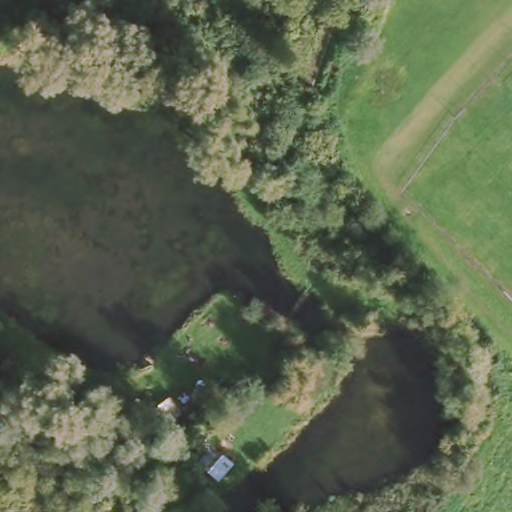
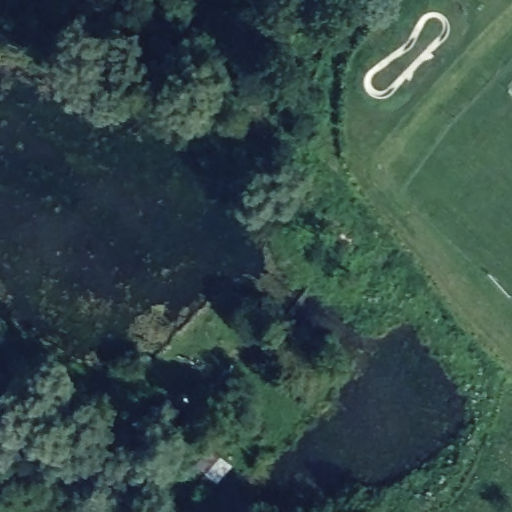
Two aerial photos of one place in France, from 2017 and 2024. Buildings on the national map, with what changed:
unchanged [(166,399),(175,415),(139,438),(130,420),(166,399)]

